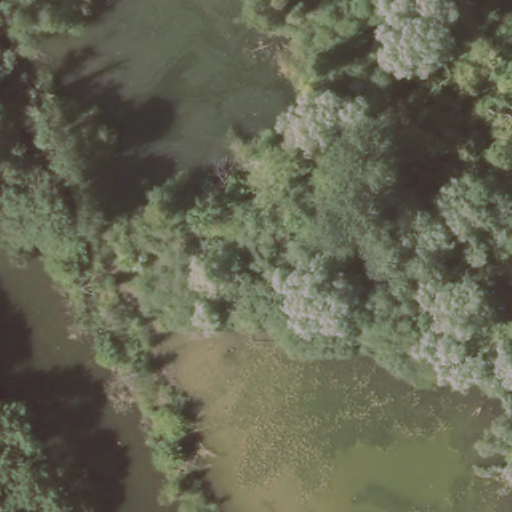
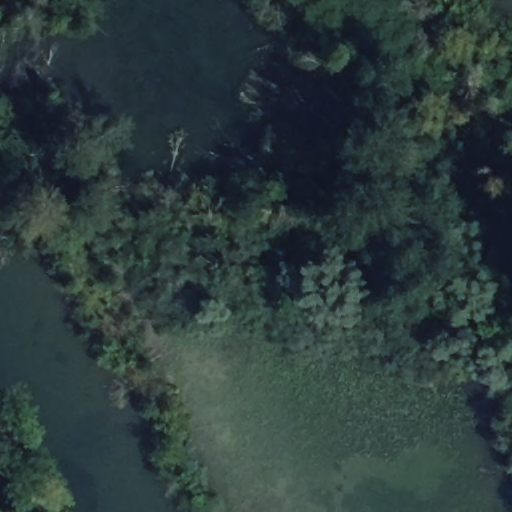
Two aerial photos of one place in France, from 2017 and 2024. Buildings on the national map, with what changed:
unchanged [(359,318),(339,325),(331,303),(353,296),(359,318)]

